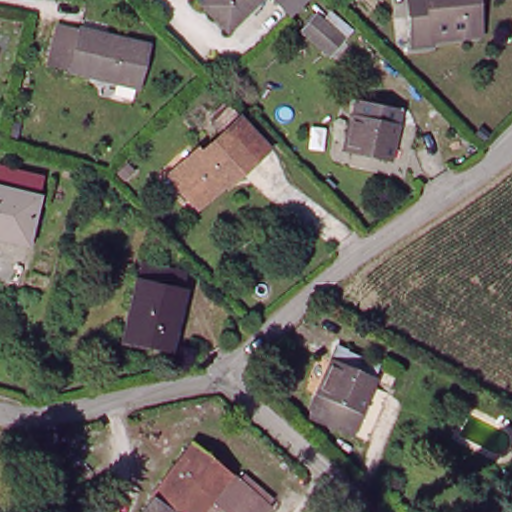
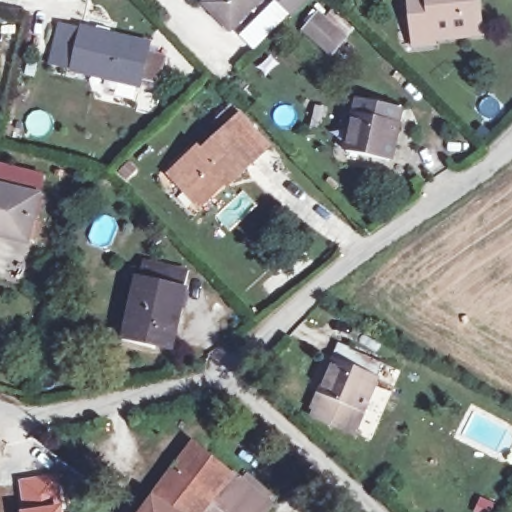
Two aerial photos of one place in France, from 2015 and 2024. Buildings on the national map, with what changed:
unchanged [(205,4),(209,0),(263,0),(230,31),(205,4)]
unchanged [(435,44),(415,47),(412,16),(410,0),(477,0),(478,6),(482,35),(475,35),(435,40),(435,44)]
unchanged [(332,56),(306,31),(320,16),(347,40),(332,56)]
unchanged [(151,45),(140,89),(72,73),(52,66),(62,26),(83,31),(84,29),(151,45)]
unchanged [(392,162),(347,153),(359,100),(403,109),(400,123),(392,162)]
unchanged [(229,188),(227,186),(200,209),(174,179),(200,155),(205,159),(227,140),(215,128),(234,111),(244,124),(270,151),(229,188)]
unchanged [(2,172),(45,182),(40,202),(30,247),(0,241),(0,178),(2,172)]
unchanged [(125,344),(133,310),(140,280),(142,281),(145,264),(187,274),(183,291),(186,292),(173,351),(136,341),(135,347),(125,344)]
unchanged [(353,435),(312,417),(335,360),(342,347),(351,351),(383,364),(353,435)]
unchanged [(196,443),(274,507),(269,512),(229,512),(225,508),(222,512),(145,512),(196,443)]
new [(59,474),(64,512),(21,512),(17,479),(59,474)]

